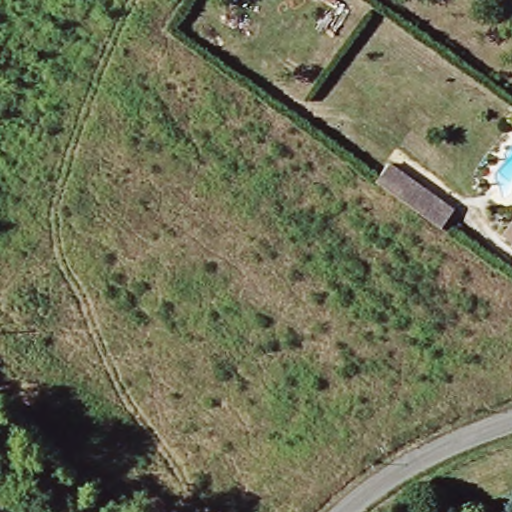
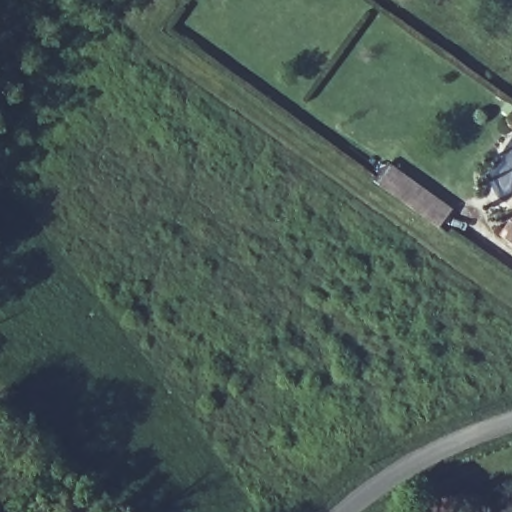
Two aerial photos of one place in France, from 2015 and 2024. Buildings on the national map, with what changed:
unchanged [(416,210),(370,175),(382,159),(428,194),(448,209),(437,224),(416,210)]

